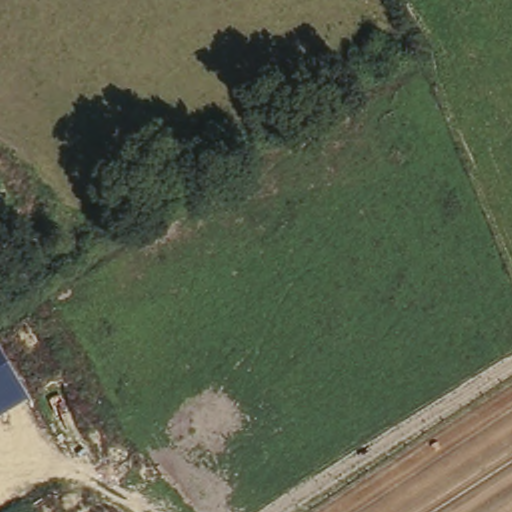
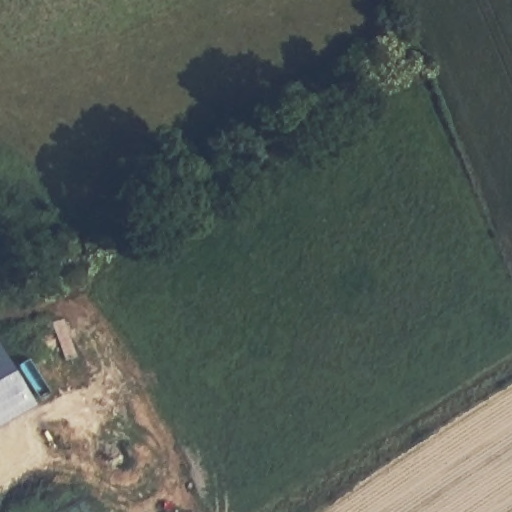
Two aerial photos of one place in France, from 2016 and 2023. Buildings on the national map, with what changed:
unchanged [(0,421),(0,352),(30,403),(0,421)]

